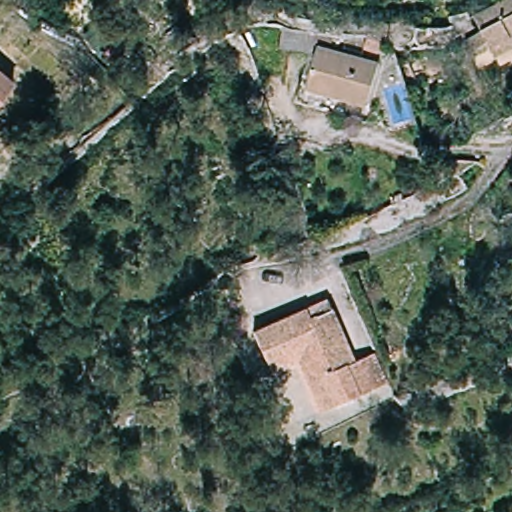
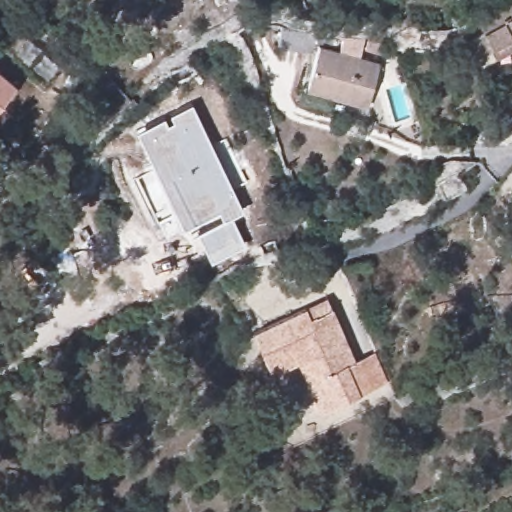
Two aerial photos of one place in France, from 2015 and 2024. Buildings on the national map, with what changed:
unchanged [(512,0),(512,47),(508,49),(495,56),(492,52),(472,61),(462,41),(485,30),(475,11),(478,11),(480,9),(499,0),(512,0)]
unchanged [(282,31),(304,34),(282,34),(282,31)]
unchanged [(318,47),(382,66),(365,125),(298,106),(312,57),(280,52),(282,40),(282,37),(282,36),(305,36),(320,37),(319,42),(318,47)]
unchanged [(0,100),(0,74),(13,86),(0,100)]
new [(135,130),(192,102),(242,210),(232,215),(245,244),(210,261),(196,230),(222,217),(218,210),(182,227),(135,130)]
unchanged [(302,310),(305,318),(328,311),(352,364),(363,358),(363,359),(376,388),(315,415),(293,365),(267,376),(248,332),(302,310)]

